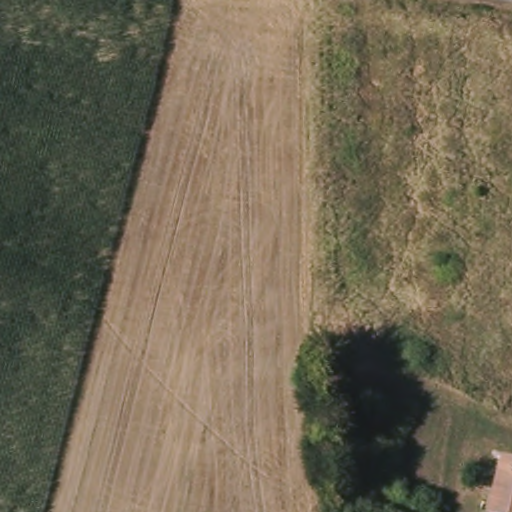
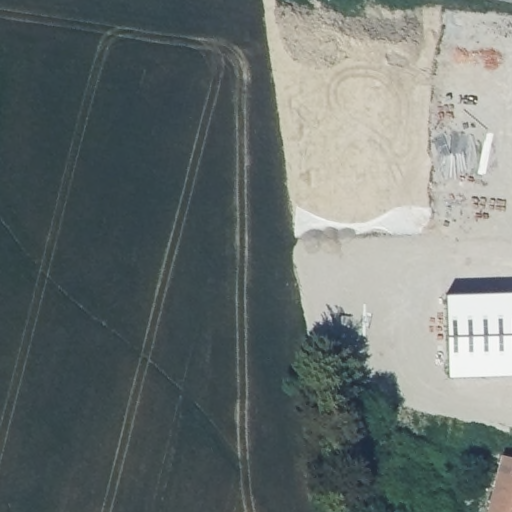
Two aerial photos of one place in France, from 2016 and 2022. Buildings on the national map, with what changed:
new [(512,293),(512,376),(450,377),(449,294),(512,293)]
unchanged [(512,455),(512,512),(491,512),(502,453),(512,455)]

